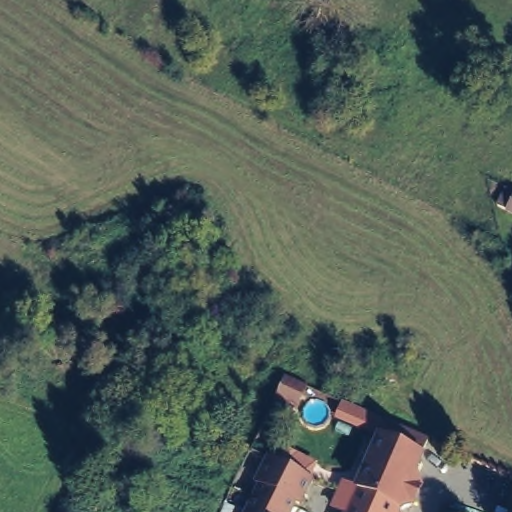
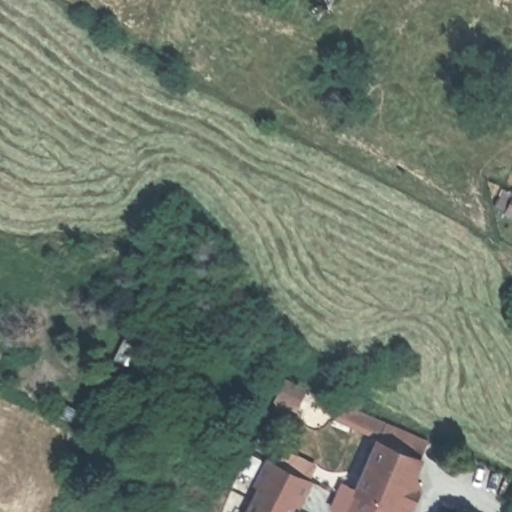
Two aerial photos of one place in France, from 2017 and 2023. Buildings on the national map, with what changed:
unchanged [(500,219),(508,194),(512,196),(512,226),(500,219)]
unchanged [(301,387),(290,409),(271,400),(282,378),(301,387)]
unchanged [(361,497),(348,491),(367,449),(380,455),(383,446),(426,465),(406,512),(354,512),(361,497)]
unchanged [(261,481),(258,479),(270,454),(312,476),(300,499),(295,496),(286,512),(273,512),(251,502),(261,481)]
unchanged [(214,512),(213,512),(128,476),(134,462),(220,498),(214,512)]
unchanged [(273,512),(246,512),(251,502),(273,512)]

